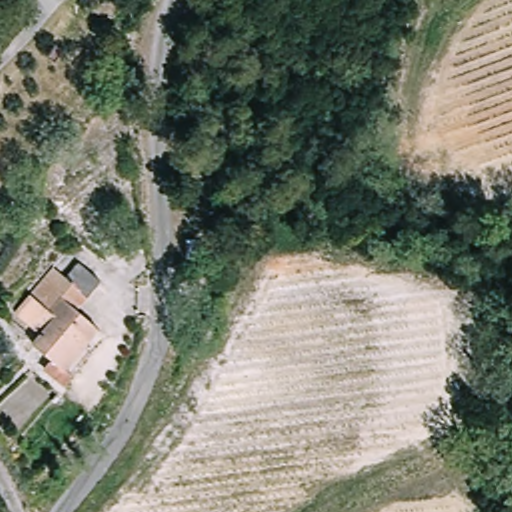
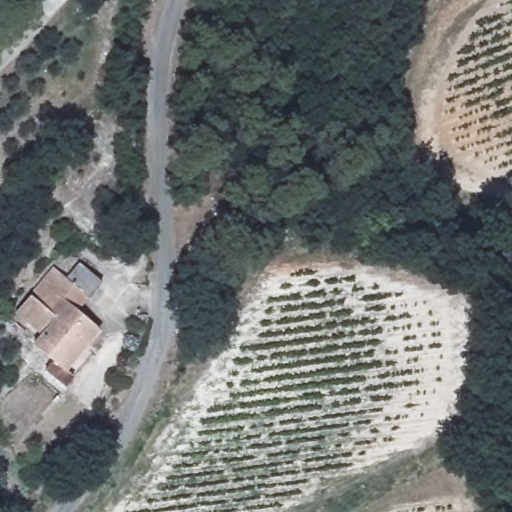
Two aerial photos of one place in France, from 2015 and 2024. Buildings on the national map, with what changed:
unchanged [(55,364),(36,347),(45,337),(16,311),(55,267),(67,278),(81,263),(102,283),(77,311),(102,335),(75,363),(71,367),(69,370),(66,372),(74,380),(66,388),(61,384),(48,372),(51,368),(55,364)]

